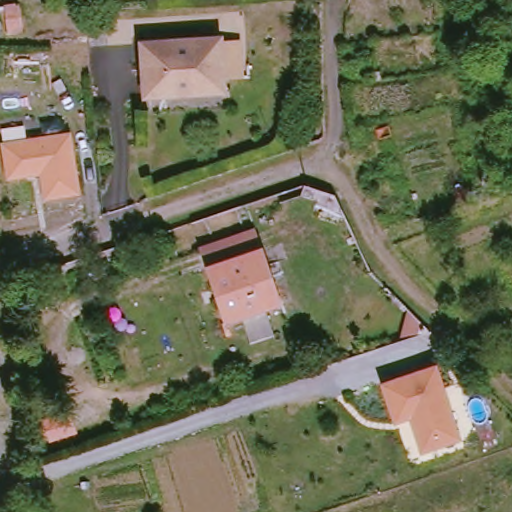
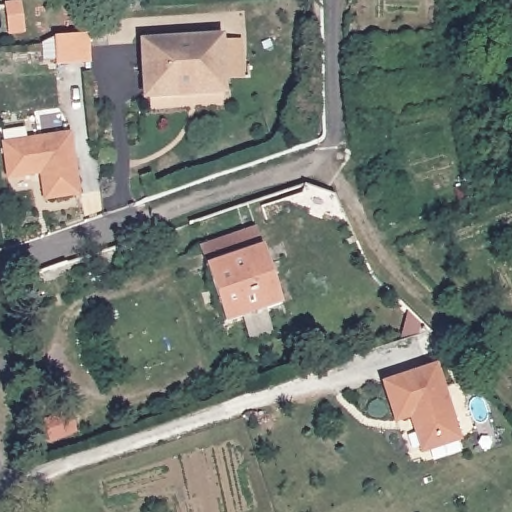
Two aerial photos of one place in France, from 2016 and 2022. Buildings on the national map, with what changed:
unchanged [(24,30),(8,32),(5,8),(5,6),(20,4),(24,30)]
unchanged [(189,94),(145,96),(142,43),(221,38),(221,41),(239,40),(241,78),(222,79),(222,82),(223,92),(189,94)]
unchanged [(80,193),(45,198),(41,173),(8,178),(2,144),(71,133),(80,193)]
unchanged [(224,310),(211,272),(267,252),(287,309),(250,322),(230,328),(224,310)]
unchanged [(422,443),(411,408),(396,413),(382,375),(436,358),(457,423),(460,431),(422,443)]

